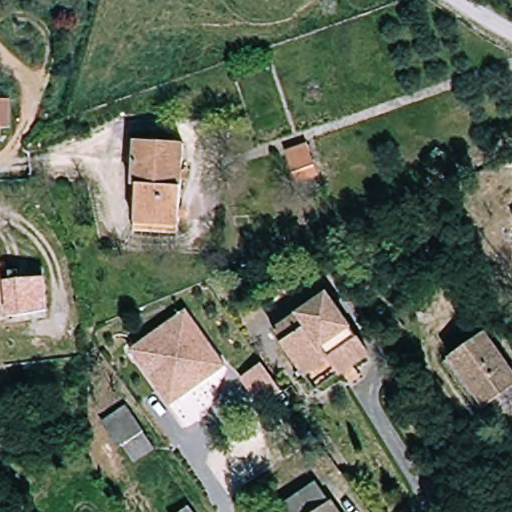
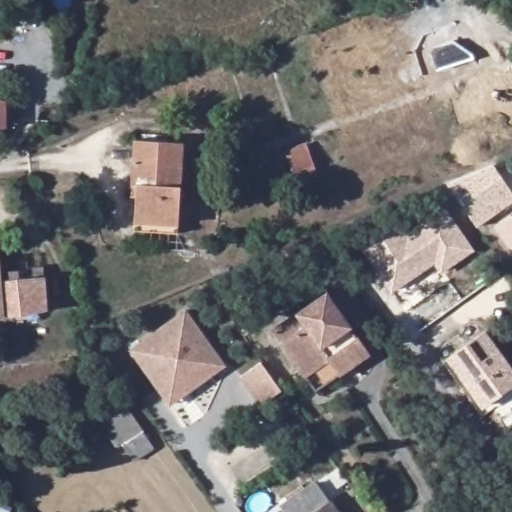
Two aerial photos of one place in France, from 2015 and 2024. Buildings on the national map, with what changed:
unchanged [(0,149),(0,123),(1,148),(0,149)]
unchanged [(132,229),(135,182),(130,182),(134,137),(184,142),(176,235),(132,229)]
unchanged [(295,176),(287,154),(310,146),(318,168),(295,176)]
new [(476,229),(449,184),(492,165),(512,193),(512,205),(476,229)]
new [(400,224),(406,232),(443,207),(474,250),(440,273),(434,264),(391,292),(361,250),(400,224)]
unchanged [(0,260),(2,317),(0,318),(0,260)]
unchanged [(9,280),(19,277),(42,275),(43,307),(21,313),(11,314),(9,280)]
unchanged [(315,389),(304,374),(272,329),(325,289),(363,342),(368,350),(315,389)]
unchanged [(150,384),(127,352),(182,312),(220,365),(205,376),(165,404),(150,384)]
unchanged [(481,410),(445,359),(484,331),(512,371),(512,387),(481,410)]
unchanged [(256,405),(236,377),(257,361),(277,390),(256,405)]
unchanged [(156,451),(125,467),(117,453),(95,463),(83,437),(126,403),(156,451)]
unchanged [(280,510),(266,491),(301,466),(314,485),(316,483),(336,512),(277,512),(280,510)]

